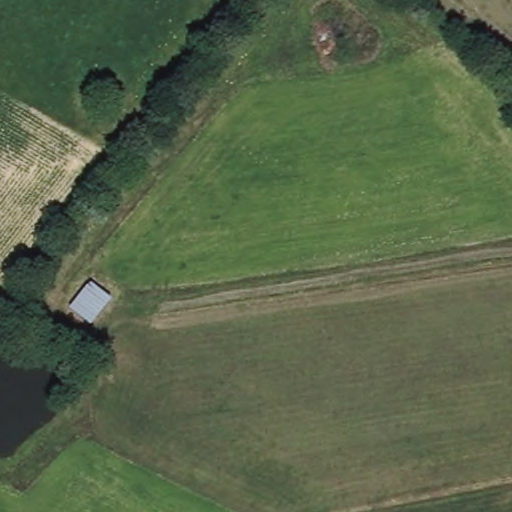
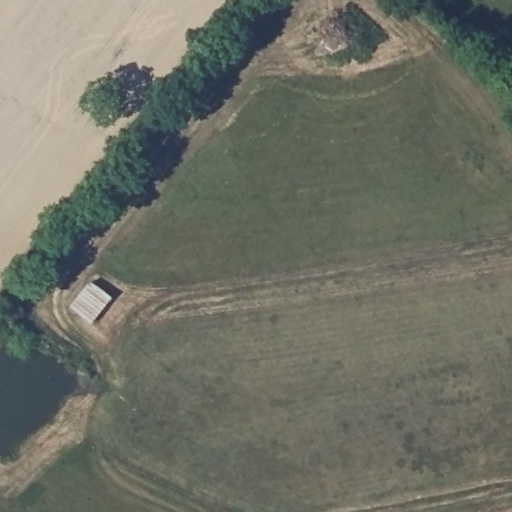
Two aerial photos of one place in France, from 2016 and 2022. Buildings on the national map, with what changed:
unchanged [(116,297),(95,324),(71,307),(94,280),(116,297)]

